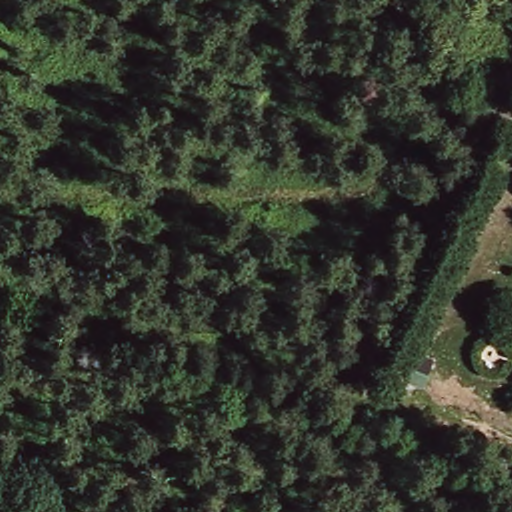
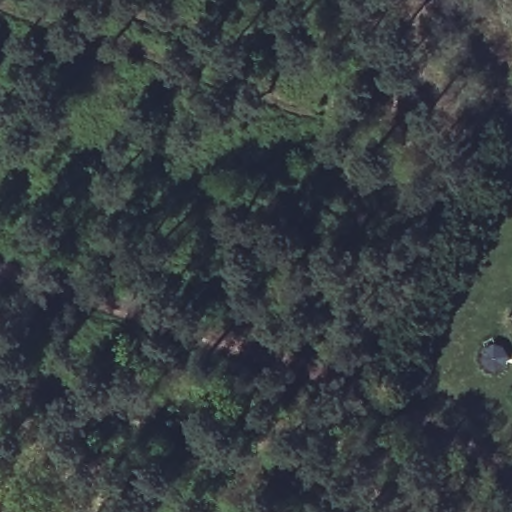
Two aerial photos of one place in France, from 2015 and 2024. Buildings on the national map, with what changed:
unchanged [(438,370),(415,363),(420,347),(443,354),(438,370)]

